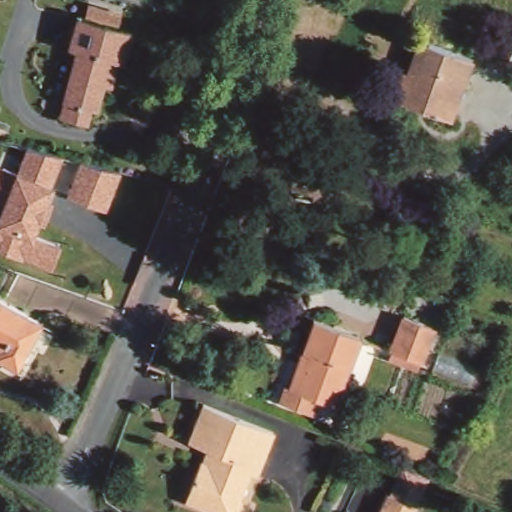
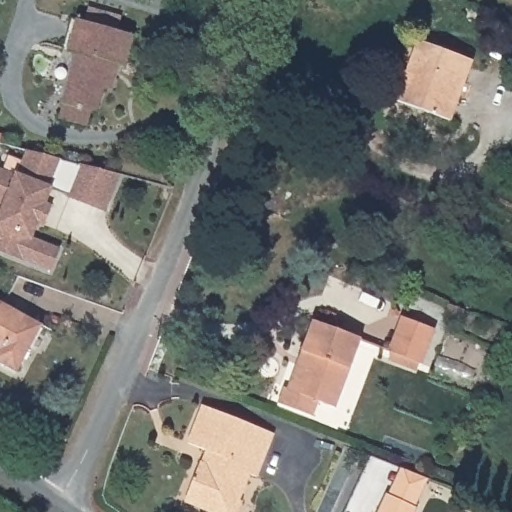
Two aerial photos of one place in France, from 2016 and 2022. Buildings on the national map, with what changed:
unchanged [(54,115),(58,103),(74,53),(60,49),(70,20),(130,39),(121,68),(115,66),(106,90),(99,88),(91,113),(84,111),(80,123),(54,115)]
unchanged [(443,120),(389,100),(398,77),(412,39),(425,44),(466,58),(443,120)]
unchanged [(60,159),(50,186),(30,237),(58,247),(50,269),(0,251),(0,210),(2,205),(0,204),(0,169),(14,173),(23,148),(60,159)]
unchanged [(120,175),(106,212),(67,198),(80,163),(120,175)]
unchanged [(19,368),(0,358),(0,296),(45,321),(19,368)]
unchanged [(333,407),(318,401),(312,415),(273,400),(278,386),(282,387),(297,350),(309,317),(360,337),(347,369),(340,389),(333,407)]
unchanged [(427,328),(413,363),(383,352),(397,318),(427,328)]
unchanged [(200,461),(205,449),(187,441),(201,405),(274,435),(257,475),(249,472),(237,500),(244,502),(239,512),(211,512),(205,509),(185,501),(189,491),(200,461)]
unchanged [(430,480),(415,511),(386,498),(401,468),(430,480)]
unchanged [(415,512),(379,512),(386,498),(415,511),(415,512)]

